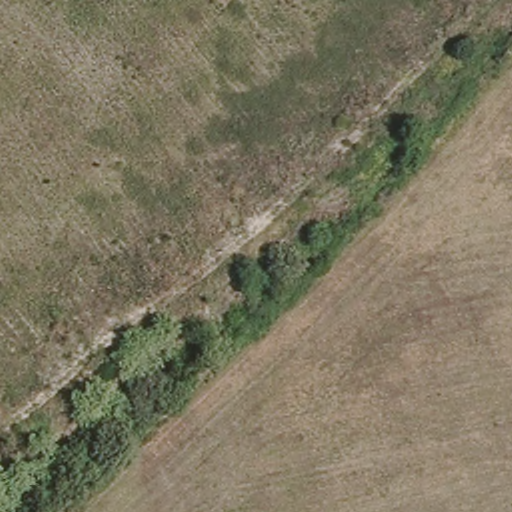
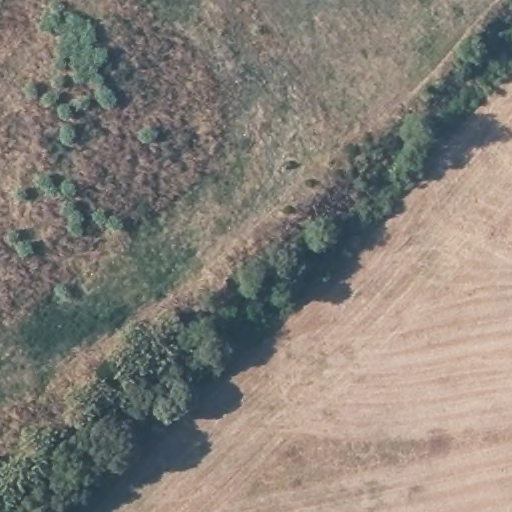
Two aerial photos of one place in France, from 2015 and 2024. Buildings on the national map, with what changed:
[]

